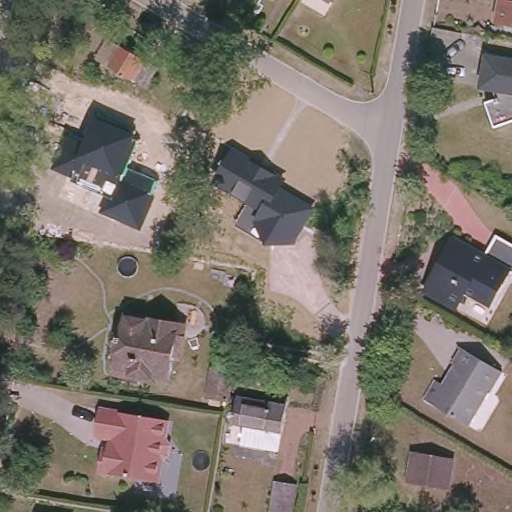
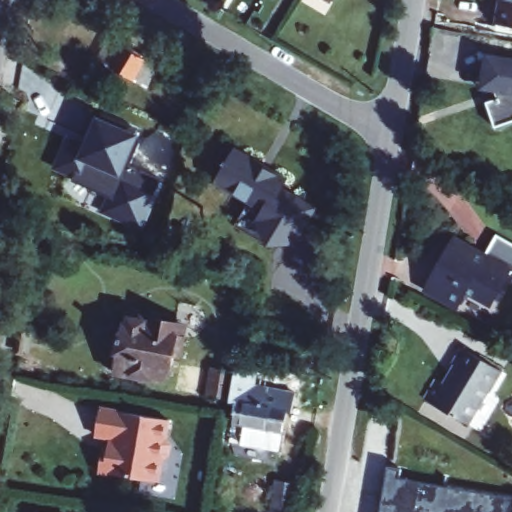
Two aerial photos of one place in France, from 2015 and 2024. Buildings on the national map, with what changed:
unchanged [(512,22),(497,19),(501,0),(512,0),(512,22)]
unchanged [(134,81),(100,60),(112,40),(147,62),(134,81)]
unchanged [(512,119),(498,124),(490,99),(507,93),(505,86),(487,83),(492,54),(512,58),(512,119)]
unchanged [(95,186),(97,181),(62,165),(73,136),(85,141),(98,109),(142,128),(140,134),(146,137),(135,164),(166,178),(146,225),(127,216),(127,215),(110,208),(115,195),(95,186)]
unchanged [(223,178),(240,149),(290,178),(285,187),(317,206),(299,237),(303,239),(300,243),(273,242),(240,223),(255,198),(223,178)]
unchanged [(468,290),(458,308),(428,291),(457,240),(495,261),(482,284),(476,294),(468,290)]
unchanged [(174,334),(181,335),(176,355),(170,354),(165,378),(150,375),(149,380),(146,380),(133,377),(115,374),(113,373),(117,346),(118,342),(115,342),(117,331),(120,331),(122,321),(123,313),(145,317),(154,319),(176,323),(174,334)]
unchanged [(493,392),(490,390),(470,422),(428,397),(440,379),(447,383),(459,361),(456,359),(465,346),(505,370),(493,392)]
unchanged [(212,361),(232,365),(226,394),(229,395),(228,402),(208,398),(210,391),(207,391),(209,376),(212,361)]
unchanged [(238,438),(242,418),(231,416),(236,390),(260,394),(285,399),(285,406),(277,445),(238,438)]
unchanged [(172,418),(170,437),(173,443),(172,453),(166,457),(162,480),(108,471),(108,469),(103,463),(105,453),(112,448),(112,447),(115,447),(117,436),(100,433),(103,406),(172,418)]
demolished [(418,451),(458,458),(454,485),(413,478),(418,451)]
new [(512,495),(512,512),(380,512),(388,466),(401,468),(399,476),(512,495)]
unchanged [(296,512),(277,512),(273,511),(280,478),(302,483),(296,512)]
unchanged [(36,512),(34,512),(34,511),(36,512)]

